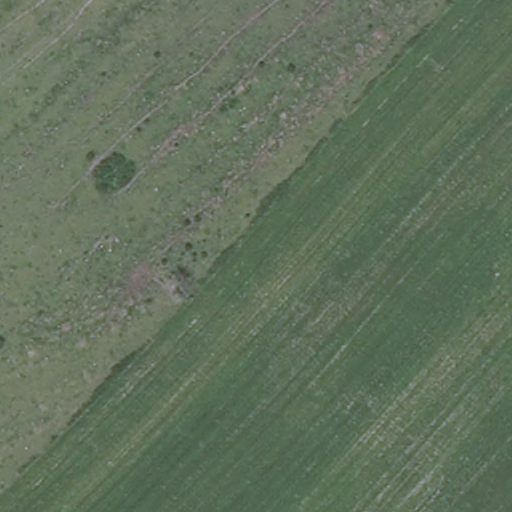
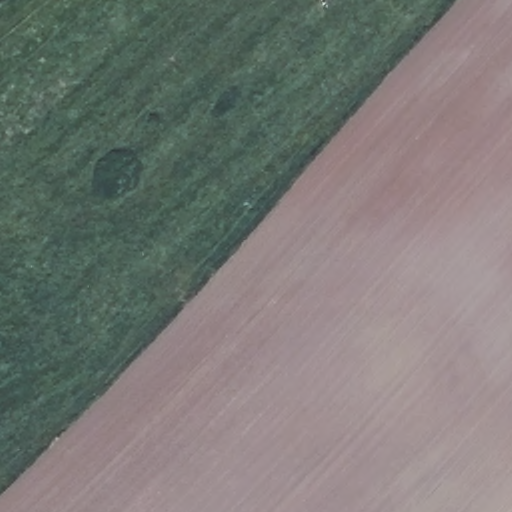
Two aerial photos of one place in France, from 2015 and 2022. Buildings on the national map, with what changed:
[]

